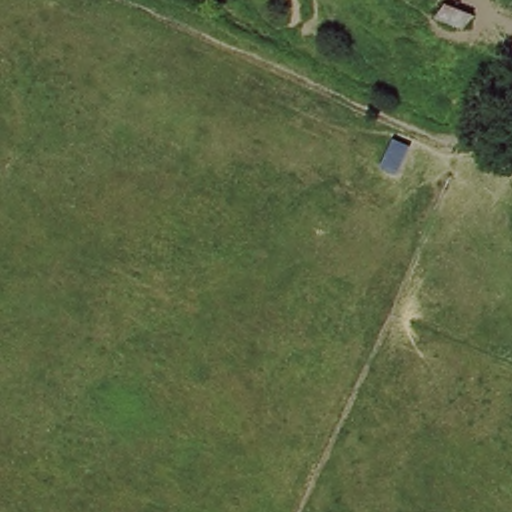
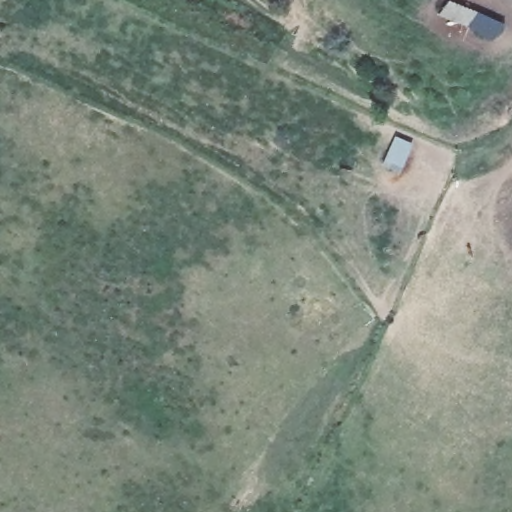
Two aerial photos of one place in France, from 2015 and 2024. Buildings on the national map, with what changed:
[]

